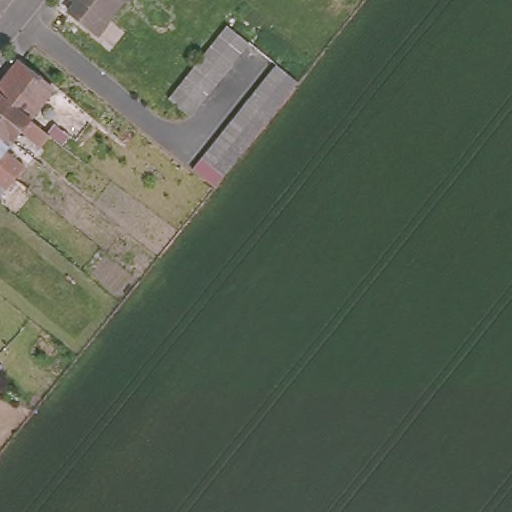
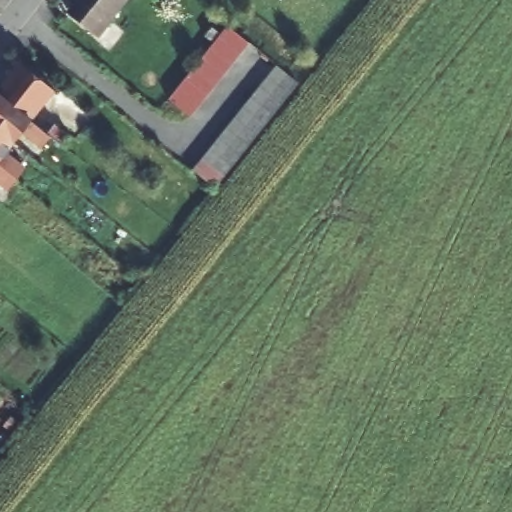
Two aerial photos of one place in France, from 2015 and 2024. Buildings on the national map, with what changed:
unchanged [(99,31),(95,27),(67,5),(61,0),(116,0),(107,12),(110,16),(99,31)]
unchanged [(203,53),(230,20),(250,37),(240,50),(233,60),(225,71),(221,75),(200,57),(203,53)]
unchanged [(15,55),(24,61),(52,83),(28,112),(0,90),(0,74),(5,67),(15,55)]
unchanged [(217,81),(209,91),(202,98),(200,101),(193,111),(170,94),(178,84),(187,74),(195,63),(200,57),(221,75),(217,81)]
unchanged [(290,86),(282,97),(274,107),(273,108),(269,113),(267,112),(248,97),(252,92),(260,81),(270,69),(278,59),(299,76),(290,86)]
unchanged [(28,112),(49,130),(39,142),(18,126),(11,135),(0,126),(0,90),(28,112)]
unchanged [(195,164),(202,155),(212,143),(217,136),(219,133),(228,122),(232,117),(235,112),(240,107),(244,102),(248,97),(267,112),(269,113),(265,118),(254,132),(249,139),(240,150),(239,151),(234,157),(232,159),(222,171),(215,179),(195,164)]
unchanged [(60,139),(49,130),(57,120),(67,130),(60,139)]
unchanged [(11,135),(4,143),(26,161),(17,172),(0,159),(0,126),(11,135)]
unchanged [(17,172),(7,185),(0,180),(0,159),(17,172)]

